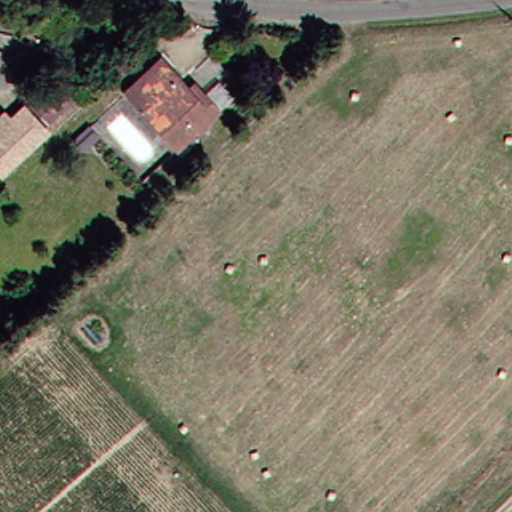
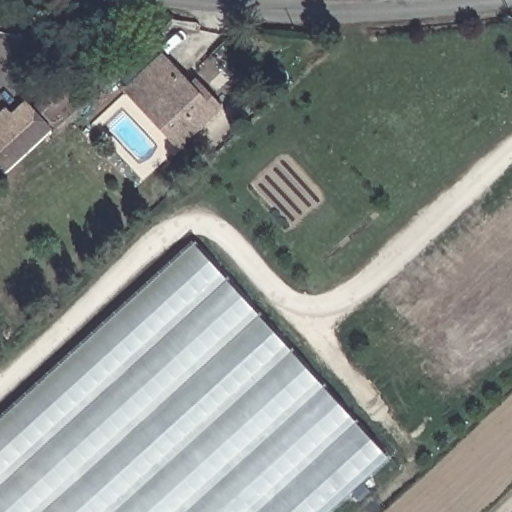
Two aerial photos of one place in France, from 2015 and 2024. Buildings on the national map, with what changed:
unchanged [(121,91),(158,57),(185,86),(190,82),(216,109),(174,147),(121,91)]
unchanged [(48,121),(35,107),(65,80),(78,94),(48,121)]
unchanged [(11,118),(25,105),(51,132),(5,175),(0,169),(0,117),(6,111),(11,118)]
new [(390,460),(333,512),(0,512),(0,420),(194,244),(390,460)]
unchanged [(512,511),(512,512),(511,512),(512,511)]

